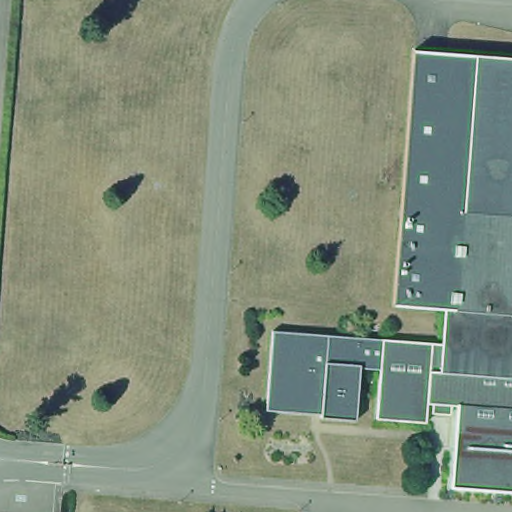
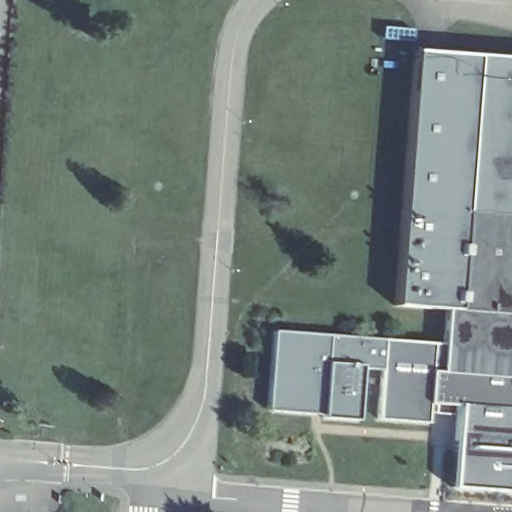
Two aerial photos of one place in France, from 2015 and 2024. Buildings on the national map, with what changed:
unchanged [(450,310),(440,309),(389,306),(410,50),(470,55),(450,310)]
unchanged [(450,310),(470,55),(512,59),(512,382),(435,375),(437,344),(440,309),(450,310)]
unchanged [(435,375),(425,375),(422,403),(420,422),(370,418),(375,369),(355,367),(350,419),(315,416),(315,413),(261,408),(268,328),(437,344),(435,375)]
unchanged [(422,403),(425,375),(435,375),(512,382),(512,411),(450,406),(422,403)]
unchanged [(450,406),(512,411),(512,493),(447,487),(450,406)]

